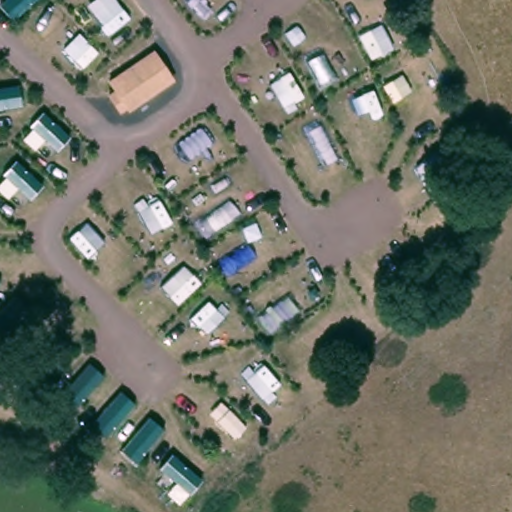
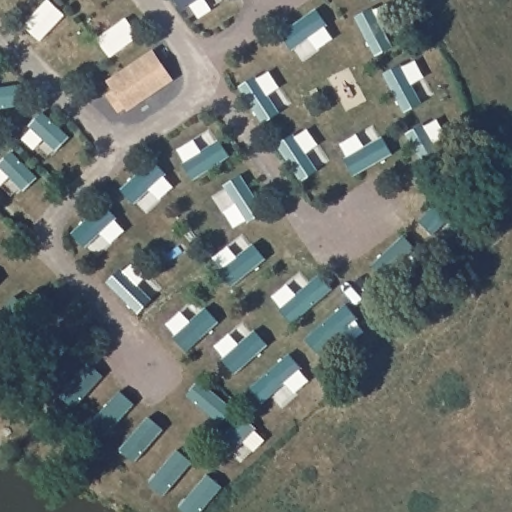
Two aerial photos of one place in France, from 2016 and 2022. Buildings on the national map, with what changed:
unchanged [(125,108),(117,113),(106,95),(113,91),(106,80),(153,51),(172,82),(128,112),(125,108)]

